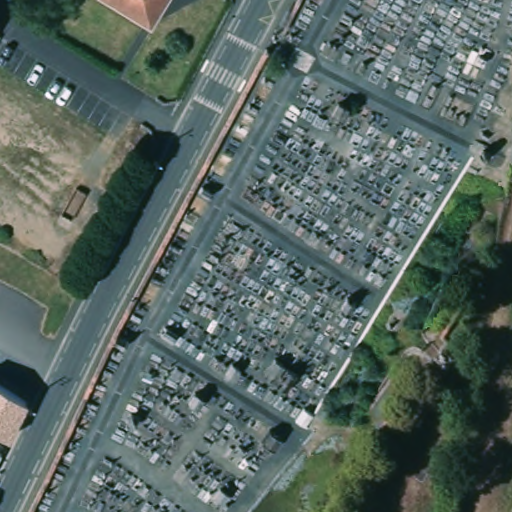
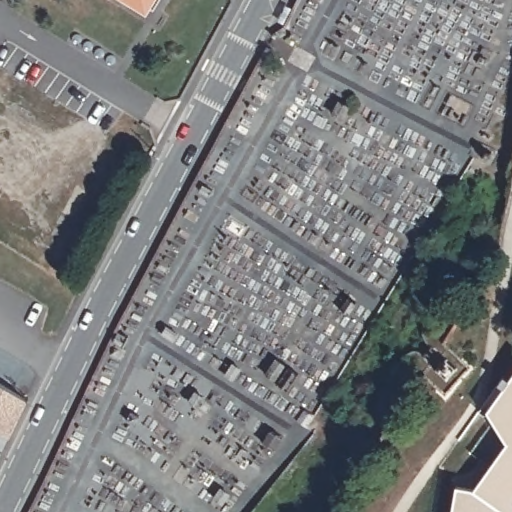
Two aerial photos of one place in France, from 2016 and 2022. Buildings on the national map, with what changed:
unchanged [(147,10),(131,0),(154,0),(147,10)]
new [(473,490),(506,443),(487,412),(512,376),(512,512),(451,512),(455,486),(473,490)]
unchanged [(10,436),(0,430),(0,384),(27,400),(10,436)]
unchanged [(6,455),(0,466),(0,451),(6,455)]

